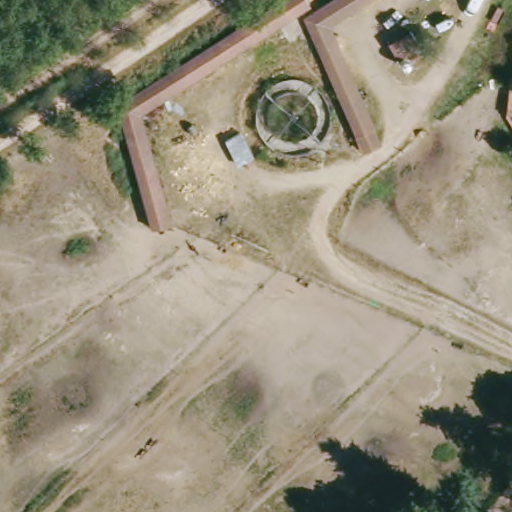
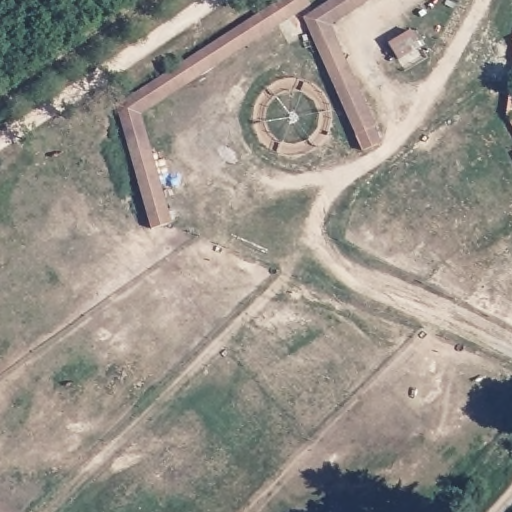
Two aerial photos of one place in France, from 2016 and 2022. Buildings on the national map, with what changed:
unchanged [(262,0),(302,0),(302,1),(133,109),(165,219),(143,225),(107,99),(262,0)]
unchanged [(327,20),(359,128),(338,134),(301,9),(315,0),(357,0),(327,20)]

